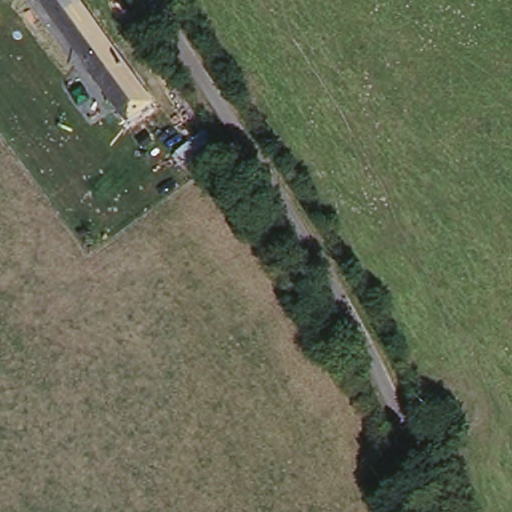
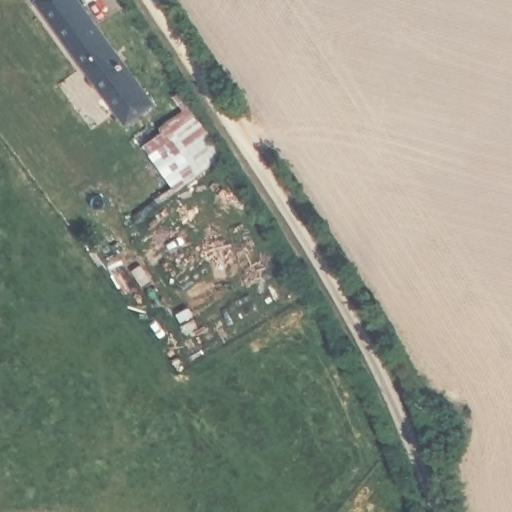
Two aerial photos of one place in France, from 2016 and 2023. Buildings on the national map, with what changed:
unchanged [(119,122),(32,0),(75,0),(148,104),(119,122)]

